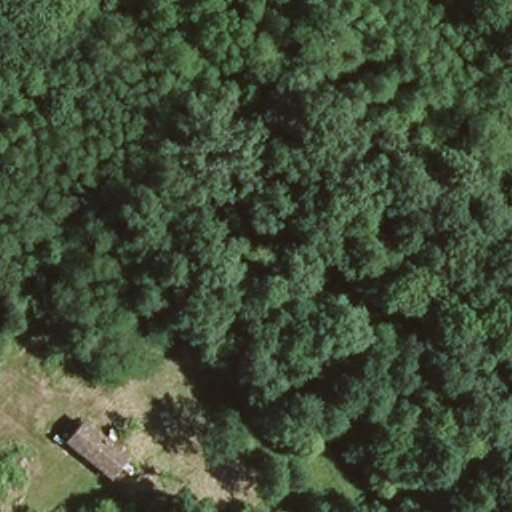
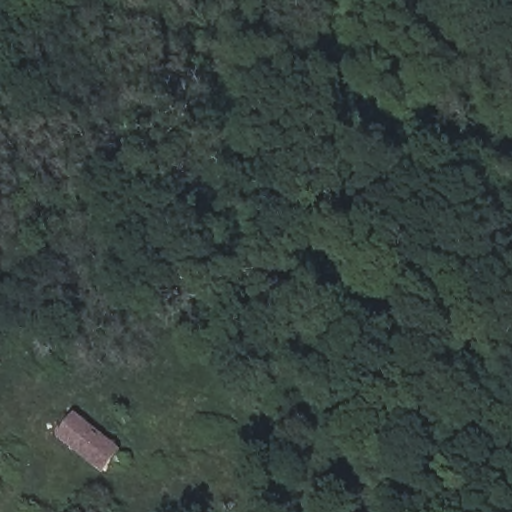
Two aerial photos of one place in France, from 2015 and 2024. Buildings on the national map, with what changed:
unchanged [(124,448),(109,466),(61,430),(77,409),(124,448)]

